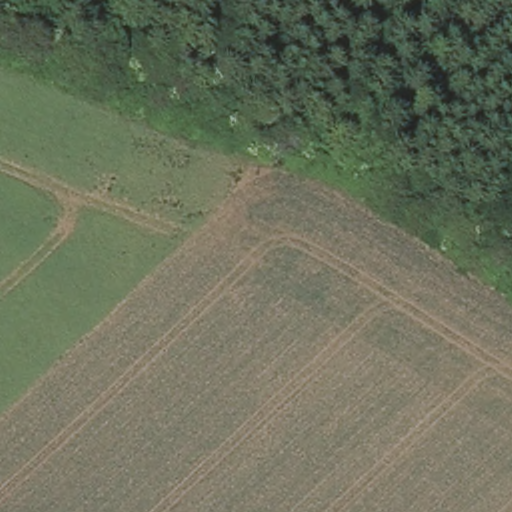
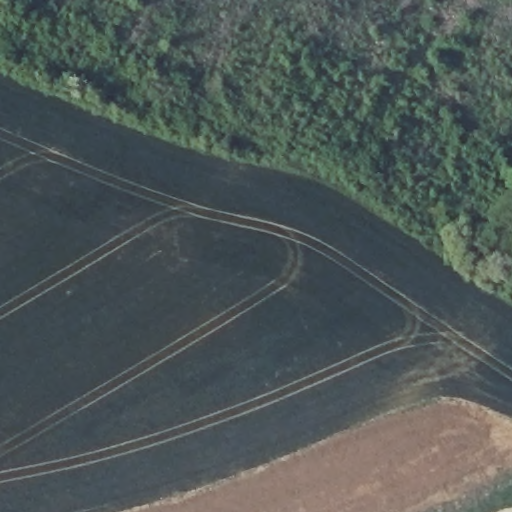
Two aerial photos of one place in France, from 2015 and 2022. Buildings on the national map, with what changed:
[]

